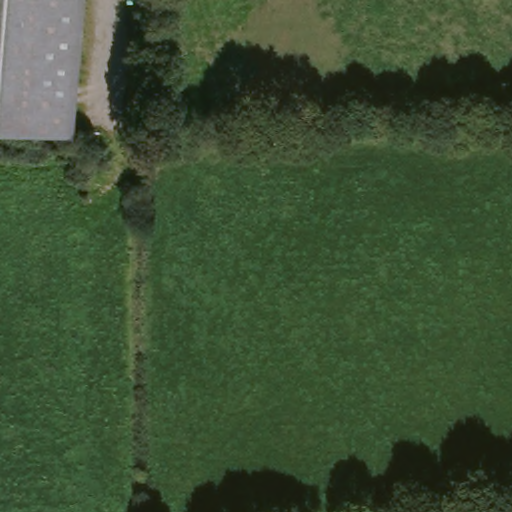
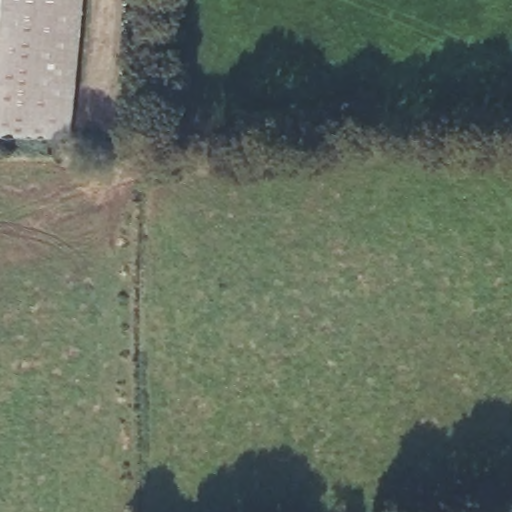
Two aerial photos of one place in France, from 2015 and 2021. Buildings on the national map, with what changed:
unchanged [(76,0),(76,135),(0,134),(0,0),(76,0)]

